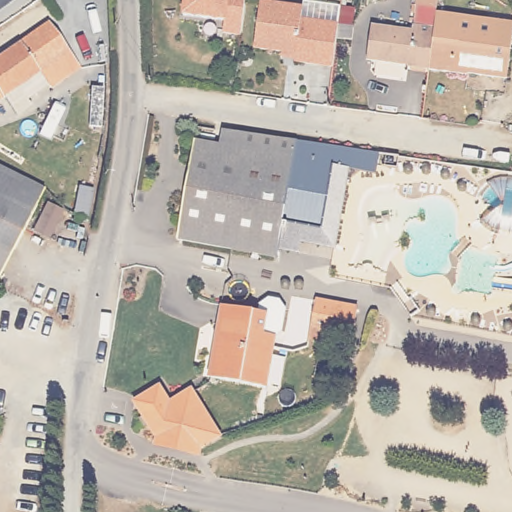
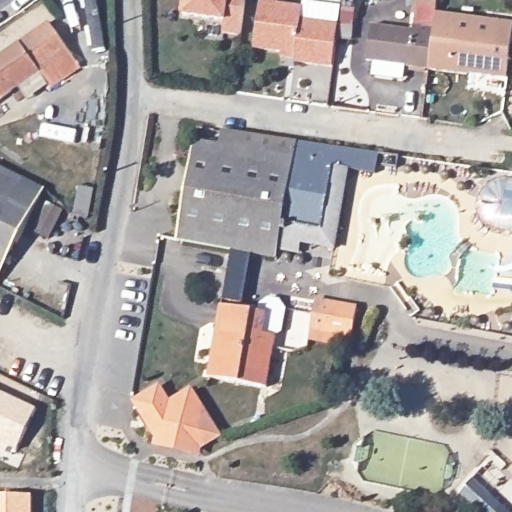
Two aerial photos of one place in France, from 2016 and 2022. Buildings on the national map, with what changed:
unchanged [(224,28),(225,15),(184,10),(186,0),(246,0),(242,30),(224,28)]
unchanged [(297,57),(298,49),(257,43),(263,0),(286,0),(305,3),(304,15),(342,20),(340,33),(335,62),(297,57)]
unchanged [(366,60),(370,17),(409,23),(410,17),(414,17),(416,0),(438,0),(428,69),(366,60)]
unchanged [(458,32),(452,70),(428,69),(437,13),(512,23),(512,41),(458,32)]
unchanged [(78,59),(54,77),(44,65),(3,97),(8,104),(0,110),(0,53),(47,20),(78,59)]
unchanged [(452,70),(458,32),(512,41),(512,73),(511,80),(452,70)]
unchanged [(377,151),(374,171),(332,165),(322,223),(279,218),(292,157),(217,143),(220,121),(377,151)]
unchanged [(217,143),(292,157),(279,218),(276,249),(178,231),(193,139),(217,143)]
unchanged [(11,257),(0,280),(0,172),(44,196),(11,257)]
unchanged [(91,226),(78,224),(80,210),(83,194),(96,196),(93,216),(91,226)]
unchanged [(269,302),(282,304),(287,314),(283,338),(276,340),(267,385),(210,374),(224,304),(260,311),(269,302)]
unchanged [(353,343),(309,333),(315,303),(359,313),(353,343)]
unchanged [(160,385),(169,402),(190,387),(224,438),(196,459),(151,448),(153,438),(131,403),(160,385)]
new [(16,450),(0,442),(0,391),(34,408),(16,450)]
new [(36,512),(0,512),(0,498),(36,497),(36,512)]

